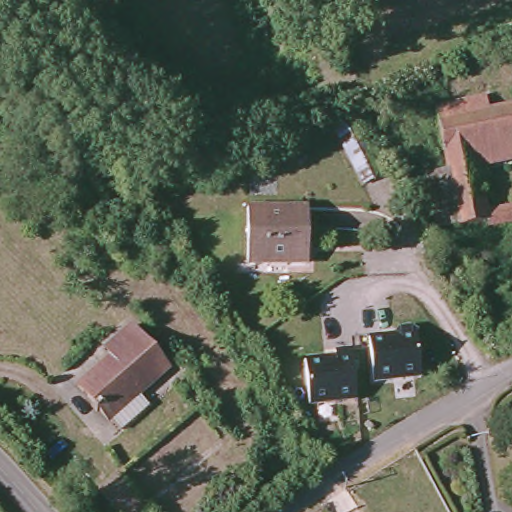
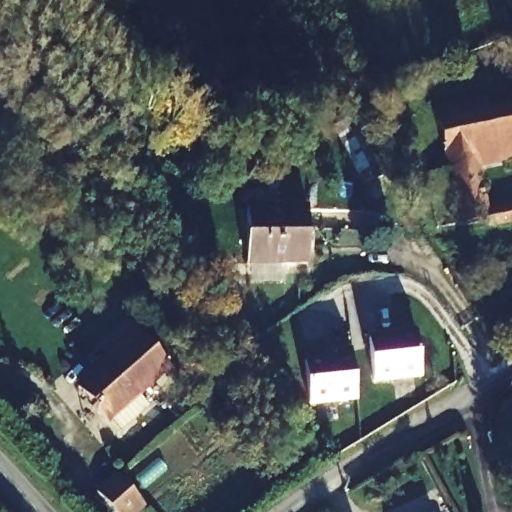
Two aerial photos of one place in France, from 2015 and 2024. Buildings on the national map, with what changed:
unchanged [(484,215),(512,209),(512,225),(486,230),(485,225),(455,231),(455,229),(434,233),(422,179),(447,174),(444,155),(439,156),(430,111),(482,101),(485,116),(512,110),(512,163),(499,165),(475,170),(484,215)]
unchanged [(354,120),(381,176),(362,185),(335,130),(354,120)]
unchanged [(302,210),(308,212),(308,264),(248,264),(247,209),(301,208),(302,210)]
unchanged [(167,368),(138,394),(150,407),(121,432),(110,419),(107,421),(78,388),(111,359),(104,350),(115,340),(132,326),(167,368)]
unchanged [(415,335),(419,378),(372,381),(368,338),(415,335)]
unchanged [(351,358),(355,402),(309,405),(305,360),(351,358)]
unchanged [(136,512),(114,512),(97,493),(117,475),(144,505),(136,512)]

